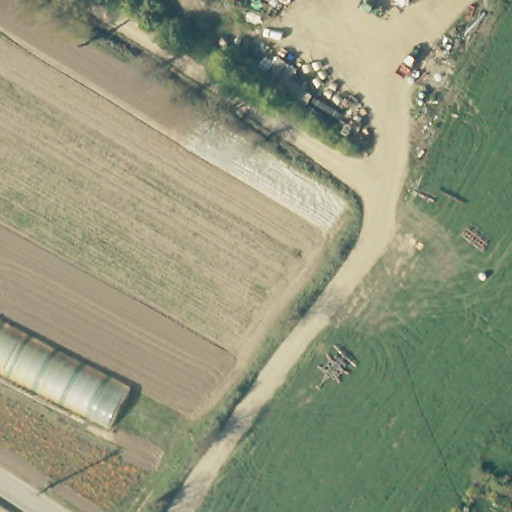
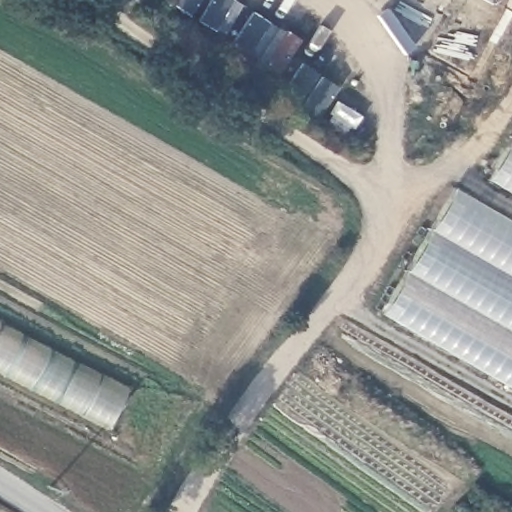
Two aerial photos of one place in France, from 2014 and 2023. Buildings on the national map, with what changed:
new [(512,137),(512,188),(490,175),(512,137)]
new [(456,188),(512,220),(512,384),(384,309),(456,188)]
unchanged [(130,384),(109,438),(0,382),(0,322),(130,384)]

